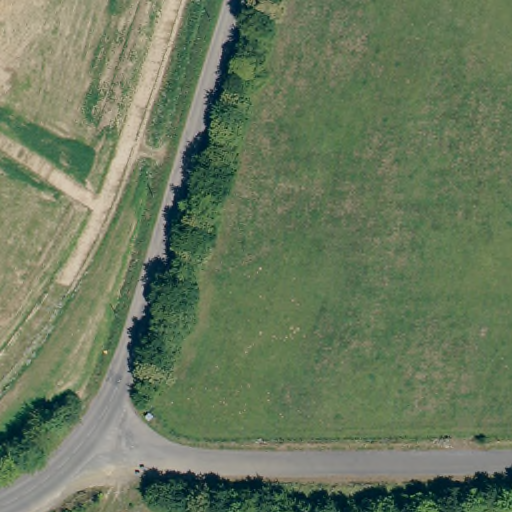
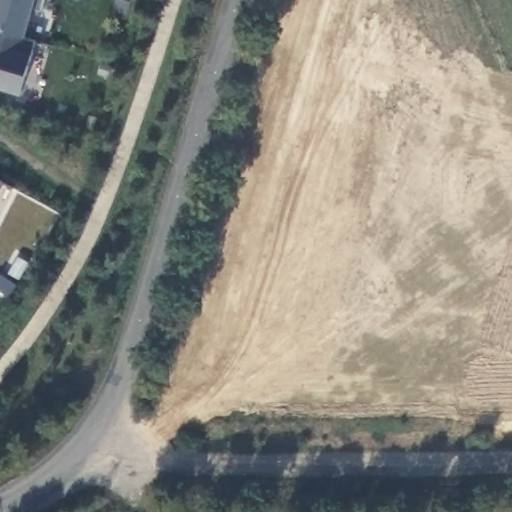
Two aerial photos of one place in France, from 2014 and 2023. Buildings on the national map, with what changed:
new [(32,10),(25,36),(36,39),(32,53),(22,92),(0,87),(0,0),(45,0),(42,11),(32,10)]
new [(2,183),(0,189),(0,182),(2,183)]

